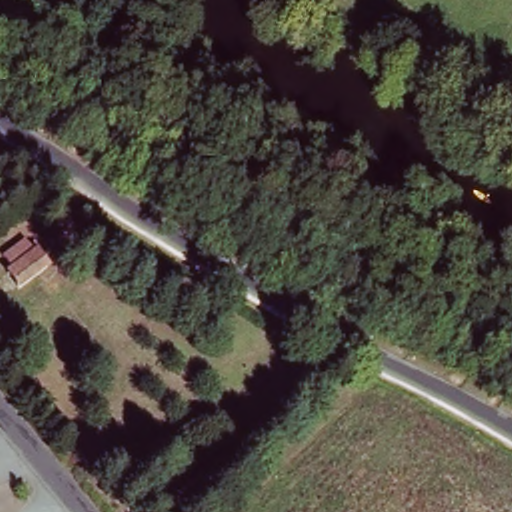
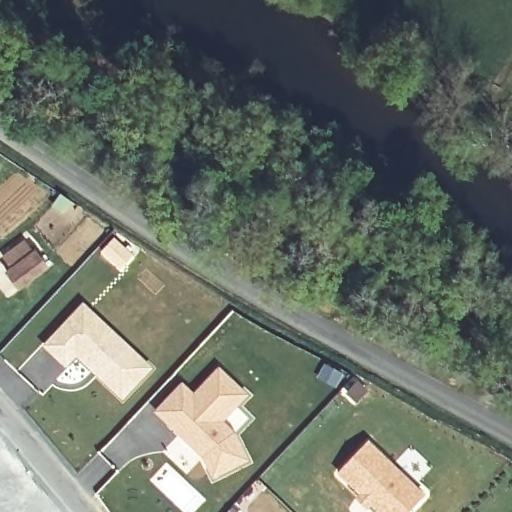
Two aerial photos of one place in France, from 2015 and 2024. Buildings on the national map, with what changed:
unchanged [(79,205),(75,209),(68,205),(66,209),(56,203),(62,194),(79,205)]
unchanged [(25,289),(13,274),(17,270),(9,257),(30,240),(34,245),(39,241),(49,254),(45,258),(52,268),(25,289)]
new [(74,354),(64,364),(44,346),(69,319),(81,305),(99,322),(147,368),(120,397),(98,376),(89,368),(74,354)]
new [(182,386),(195,397),(220,370),(246,395),(236,406),(221,422),(234,434),(247,460),(214,477),(204,457),(157,412),(182,386)]
new [(368,439),(425,494),(408,512),(376,512),(335,473),(368,439)]

